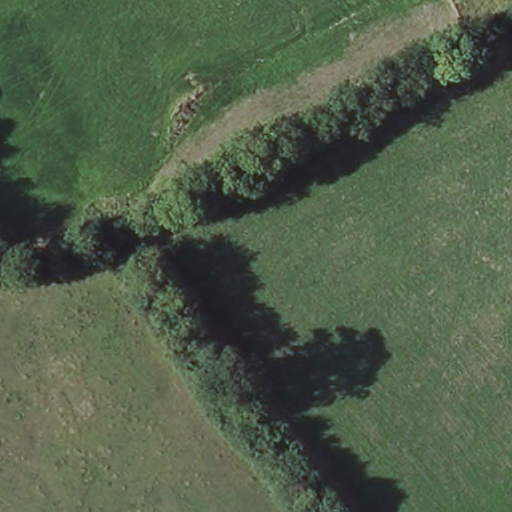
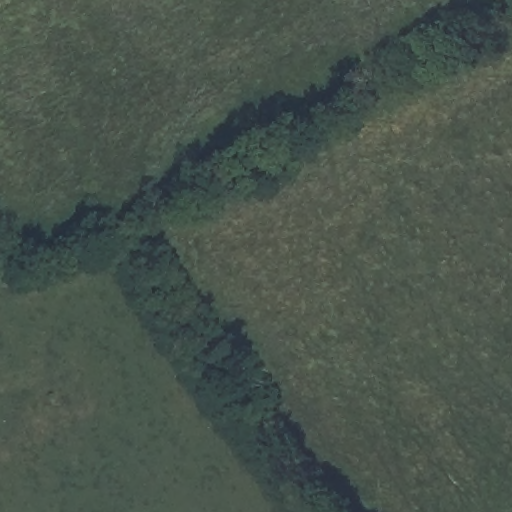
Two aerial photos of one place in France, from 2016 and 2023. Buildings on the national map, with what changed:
[]

